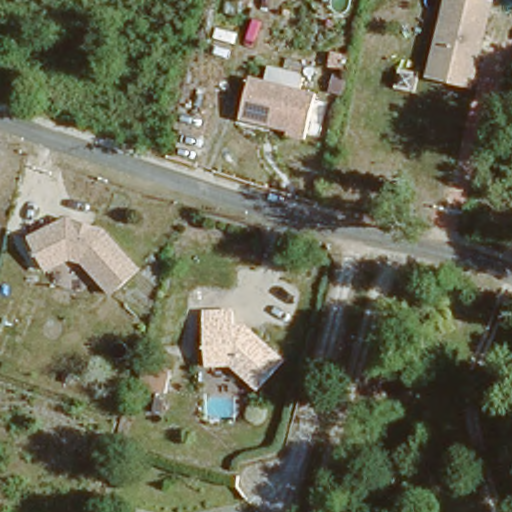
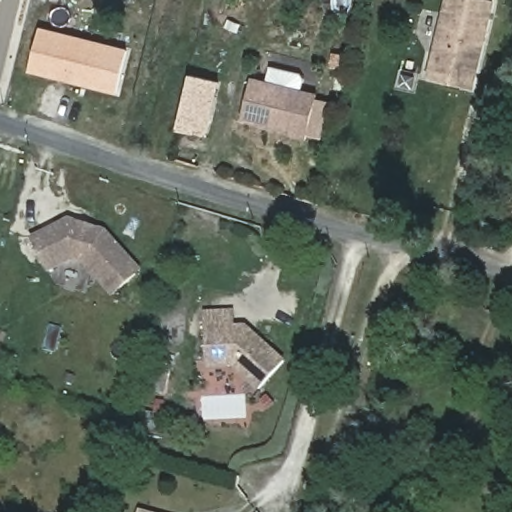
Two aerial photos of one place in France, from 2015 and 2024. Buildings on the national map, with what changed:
unchanged [(471,90),(425,79),(447,0),(474,0),(490,4),(471,90)]
new [(127,50),(116,95),(28,73),(40,28),(127,50)]
new [(186,77),(214,89),(196,146),(164,135),(186,77)]
unchanged [(317,93),(308,139),(243,122),(254,78),(317,93)]
unchanged [(145,271),(114,297),(88,267),(74,260),(51,272),(34,238),(68,220),(105,229),(145,271)]
unchanged [(259,392),(231,366),(209,367),(204,312),(234,309),(237,326),(247,325),(286,361),(259,392)]

